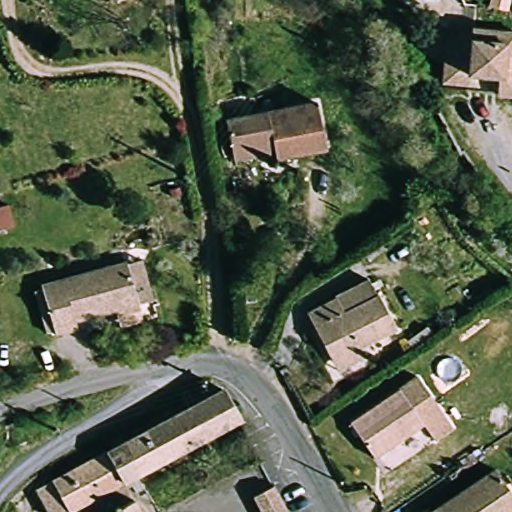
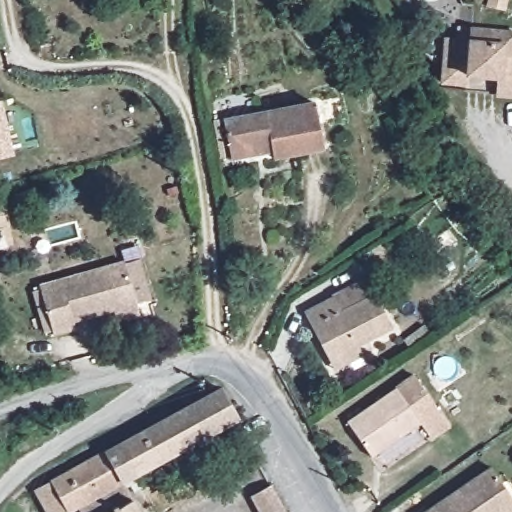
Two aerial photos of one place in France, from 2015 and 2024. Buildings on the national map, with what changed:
unchanged [(495,96),(495,89),(442,86),(445,39),(467,39),(469,28),(512,31),(512,96),(495,96)]
new [(0,101),(2,100),(14,156),(0,159),(0,101)]
unchanged [(322,149),(275,158),(272,143),(230,151),(226,123),(316,109),(322,149)]
unchanged [(0,207),(8,205),(12,226),(0,229),(0,207)]
unchanged [(117,320),(116,311),(78,319),(80,329),(57,335),(45,286),(127,265),(137,306),(140,314),(117,320)]
unchanged [(340,372),(330,356),(308,311),(336,296),(345,310),(377,294),(392,321),(358,339),(367,357),(340,372)]
unchanged [(350,422),(397,389),(414,377),(450,429),(432,441),(430,439),(422,427),(377,460),(350,422)]
unchanged [(240,418),(126,484),(143,512),(86,512),(83,508),(77,512),(53,512),(42,491),(200,399),(223,387),(240,418)]
unchanged [(491,466),(512,493),(512,508),(508,512),(432,512),(491,466)]
unchanged [(257,497),(275,486),(289,512),(265,512),(257,497)]

